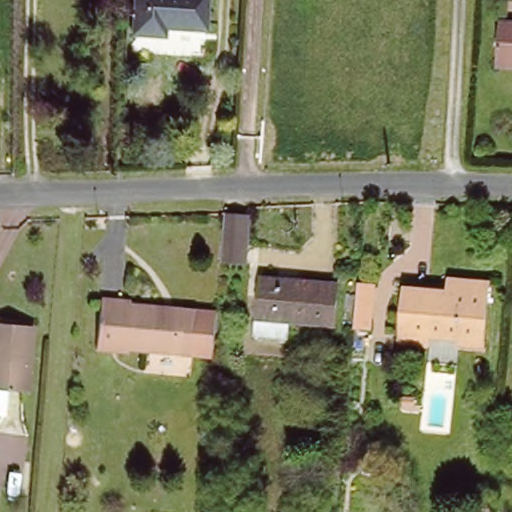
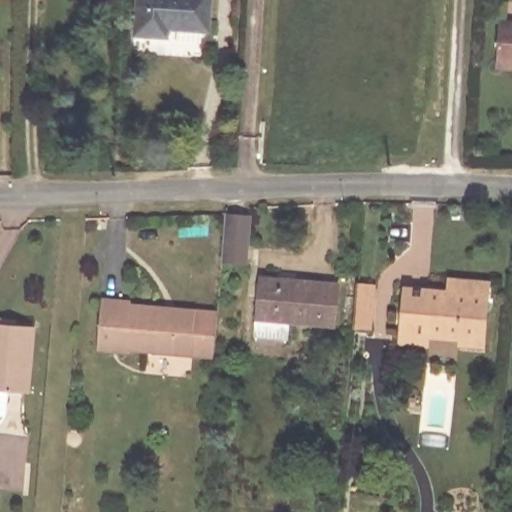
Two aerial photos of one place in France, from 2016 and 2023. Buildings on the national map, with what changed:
unchanged [(137,37),(138,0),(209,0),(208,29),(168,28),(167,37),(156,37),(137,37)]
unchanged [(506,12),(512,13),(512,61),(503,60),(506,12)]
unchanged [(234,194),(259,196),(254,241),(230,239),(234,194)]
unchanged [(379,196),(394,197),(393,214),(377,213),(379,196)]
unchanged [(426,346),(406,345),(407,332),(409,285),(452,287),(453,275),(470,276),(491,277),(486,345),(466,343),(466,335),(433,333),(432,346),(426,346)]
unchanged [(255,338),(256,318),(260,277),(339,282),(336,323),(291,321),(290,341),(255,338)]
unchanged [(370,282),(388,283),(384,324),(366,322),(370,282)]
unchanged [(211,351),(191,351),(126,350),(126,355),(96,355),(98,301),(127,301),(127,305),(192,305),(215,305),(211,351)]
unchanged [(19,317),(18,325),(34,325),(31,388),(0,387),(0,317),(19,317)]

